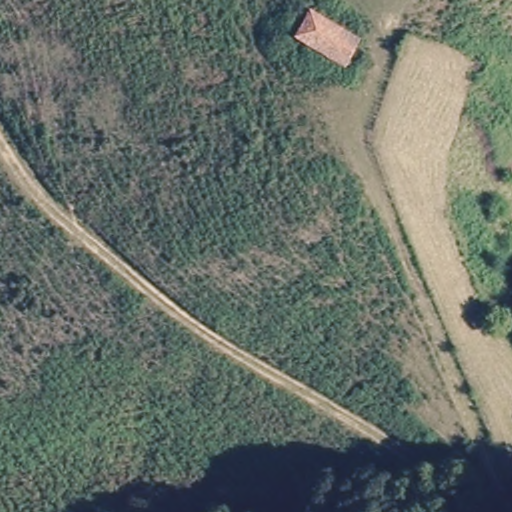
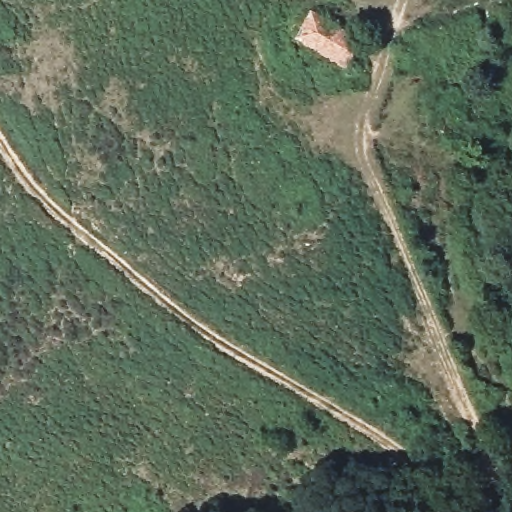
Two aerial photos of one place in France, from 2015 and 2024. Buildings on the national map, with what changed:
unchanged [(322,17),(361,40),(348,63),(308,41),(322,17)]

